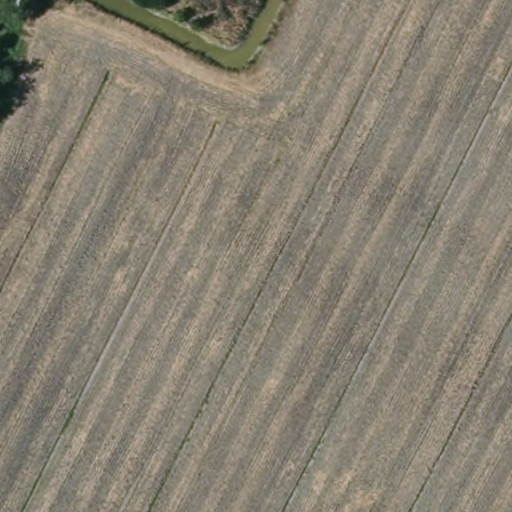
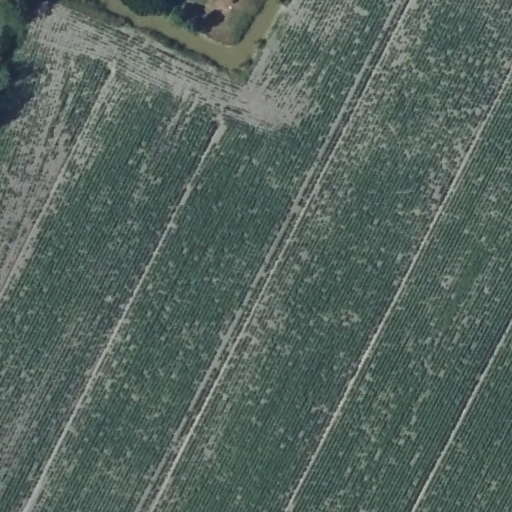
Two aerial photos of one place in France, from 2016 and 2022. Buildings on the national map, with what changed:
unchanged [(170,11),(158,5),(149,0),(176,0),(170,11)]

